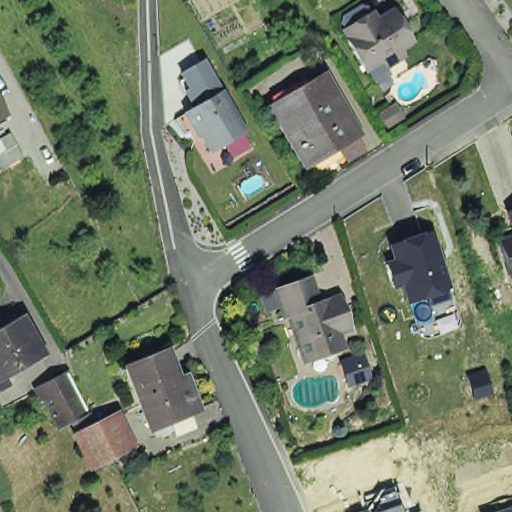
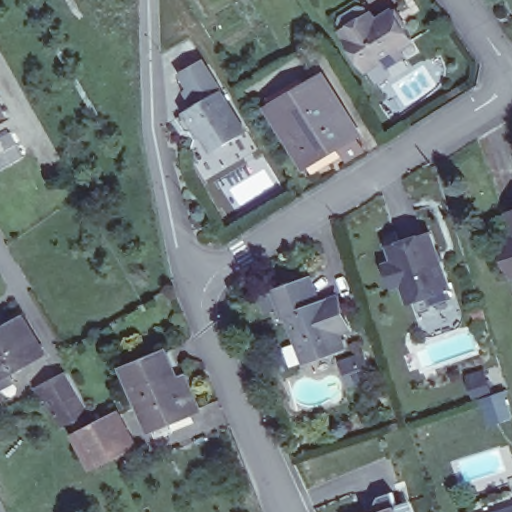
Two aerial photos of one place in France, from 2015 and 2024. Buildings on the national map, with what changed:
unchanged [(353,43),(344,26),(377,9),(392,0),(394,0),(417,44),(407,49),(410,57),(391,70),(386,62),(365,72),(345,49),(353,43)]
unchanged [(197,126),(190,113),(199,109),(184,83),(210,68),(225,94),(247,135),(214,154),(205,138),(202,140),(195,128),(197,126)]
unchanged [(329,69),(361,124),(310,154),(277,99),(329,69)]
unchanged [(0,117),(0,99),(7,112),(0,117)]
unchanged [(0,139),(12,132),(26,156),(3,168),(0,163),(0,139)]
unchanged [(14,175),(35,163),(42,176),(22,188),(14,175)]
unchanged [(510,209),(512,209),(512,214),(510,209)]
unchanged [(432,229),(450,287),(409,301),(403,283),(392,287),(384,265),(395,260),(390,242),(432,229)]
unchanged [(510,270),(502,248),(505,248),(502,237),(512,235),(512,270),(510,270)]
unchanged [(300,337),(292,310),(287,311),(279,282),(308,274),(316,301),(342,295),(351,323),(341,326),(345,337),(337,358),(325,350),(314,354),(305,356),(300,337)]
unchanged [(45,347),(12,368),(14,373),(0,381),(0,326),(25,311),(45,347)]
unchanged [(165,418),(167,427),(159,431),(155,422),(150,424),(127,363),(164,347),(177,384),(185,381),(194,403),(165,418)]
unchanged [(70,421),(60,426),(42,389),(72,373),(90,410),(100,427),(105,425),(117,419),(131,448),(119,454),(92,468),(78,439),(70,421)]
unchanged [(379,512),(375,496),(395,490),(400,506),(402,512),(378,512),(379,512)]
unchanged [(512,507),(512,512),(497,512),(512,507)]

